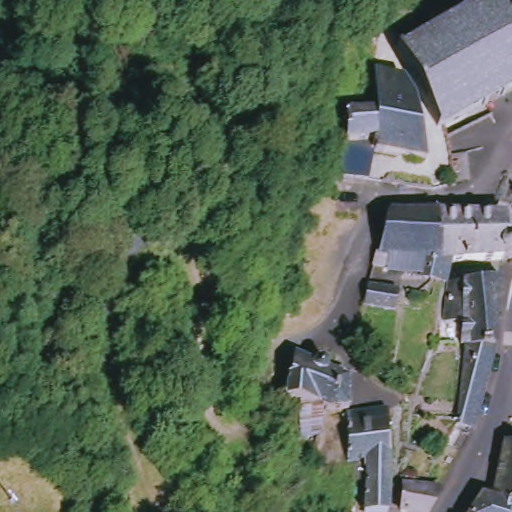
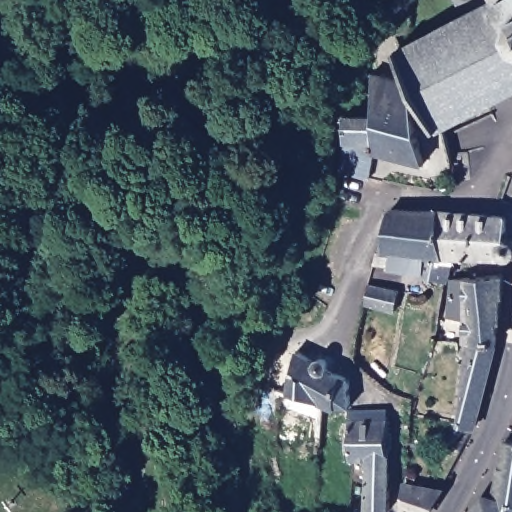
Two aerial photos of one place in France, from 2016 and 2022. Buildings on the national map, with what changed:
unchanged [(480,5),(477,0),(512,0),(512,88),(449,121),(443,124),(415,74),(400,46),(405,44),(432,29),(433,31),(480,5)]
unchanged [(352,135),(352,133),(352,109),(379,109),(377,67),(408,75),(418,98),(420,107),(430,156),(390,146),(385,146),(377,169),(347,160),(354,136),(352,135)]
unchanged [(368,265),(372,250),(375,251),(382,215),(389,208),(416,208),(500,215),(502,238),(512,241),(512,252),(512,254),(510,257),(500,258),(448,258),(442,277),(430,276),(420,274),(420,271),(368,265)]
unchanged [(460,381),(462,344),(457,343),(460,320),(445,318),(445,279),(497,275),(488,346),(481,385),(472,421),(470,424),(457,417),(460,381)]
unchanged [(395,309),(362,302),(369,281),(398,289),(395,309)]
unchanged [(292,390),(300,350),(317,359),(322,355),(332,358),(332,366),(352,376),(352,404),(335,406),(333,402),(324,401),(325,435),(305,434),(307,395),(292,390)]
unchanged [(280,401),(267,399),(272,385),(282,388),(280,401)]
unchanged [(345,465),(345,416),(383,414),(383,512),(361,512),(364,479),(352,477),(352,465),(345,465)]
unchanged [(487,499),(500,439),(502,440),(512,442),(512,512),(468,512),(478,496),(487,499)]
unchanged [(409,484),(410,473),(419,475),(417,485),(440,489),(427,512),(402,512),(405,483),(409,484)]

